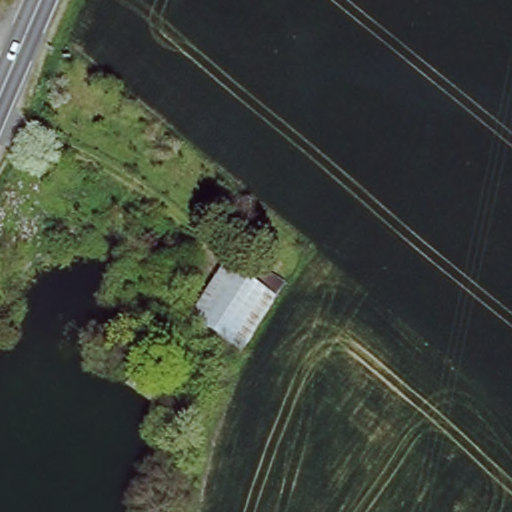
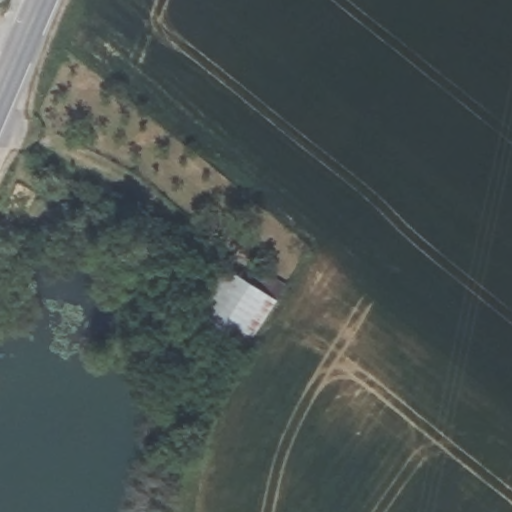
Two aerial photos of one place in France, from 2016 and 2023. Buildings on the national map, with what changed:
unchanged [(282,292),(272,306),(233,281),(242,267),(282,292)]
unchanged [(272,306),(239,359),(187,323),(217,274),(272,306)]

